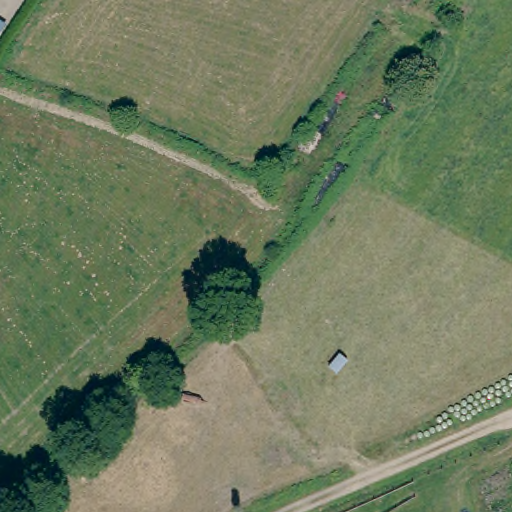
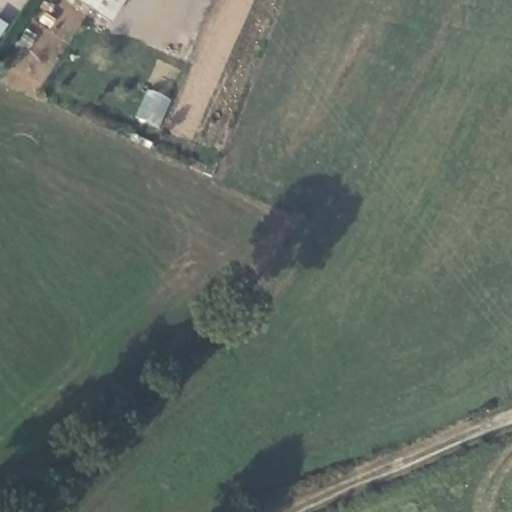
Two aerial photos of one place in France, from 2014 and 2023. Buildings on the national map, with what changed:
new [(110,23),(75,0),(124,0),(110,23)]

